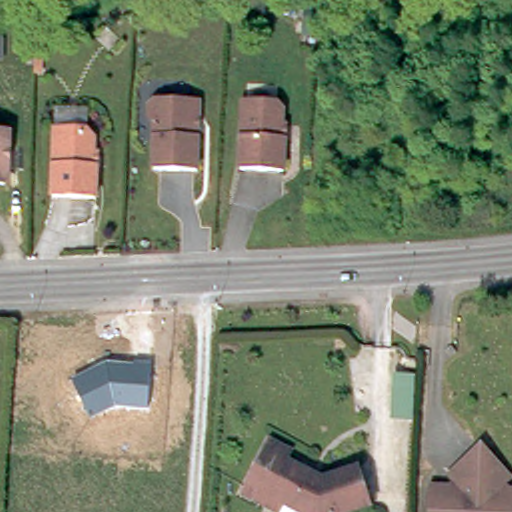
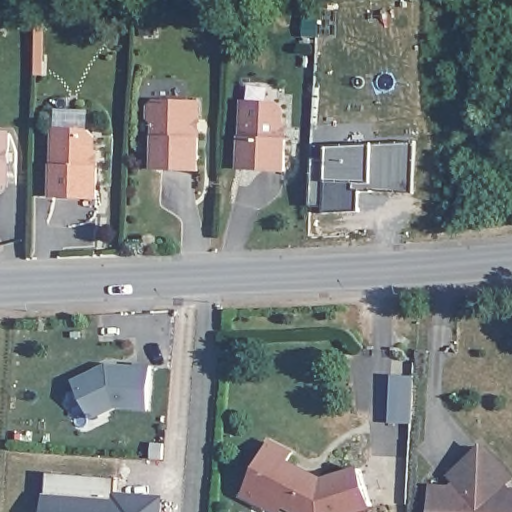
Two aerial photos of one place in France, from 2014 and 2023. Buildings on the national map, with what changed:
unchanged [(198,102),(198,117),(194,121),(194,130),(198,130),(197,171),(155,169),(155,125),(150,119),(150,106),(155,101),(198,102)]
unchanged [(282,109),(281,139),(285,140),(283,171),(240,169),(244,101),(277,103),(282,109)]
unchanged [(93,137),(92,167),(97,167),(95,198),(53,197),(55,129),(88,131),(93,137)]
unchanged [(10,151),(5,151),(5,184),(0,183),(0,133),(10,134),(10,151)]
new [(325,158),(326,145),(409,141),(409,142),(415,142),(412,192),(407,192),(370,191),(370,190),(360,191),(358,211),(322,212),(323,207),(308,206),(312,157),(325,158)]
unchanged [(107,363),(150,364),(147,412),(113,408),(92,418),(73,380),(107,363)]
new [(412,423),(387,422),(390,375),(414,376),(412,423)]
unchanged [(508,486),(512,486),(512,512),(428,512),(429,482),(455,483),(458,480),(450,470),(481,442),(510,473),(502,480),(508,486)]
unchanged [(317,486),(354,474),(366,511),(362,512),(289,512),(265,500),(260,511),(238,499),(265,447),(287,458),(282,467),(317,486)]
new [(117,498),(162,502),(161,512),(44,512),(47,471),(118,477),(117,498)]

